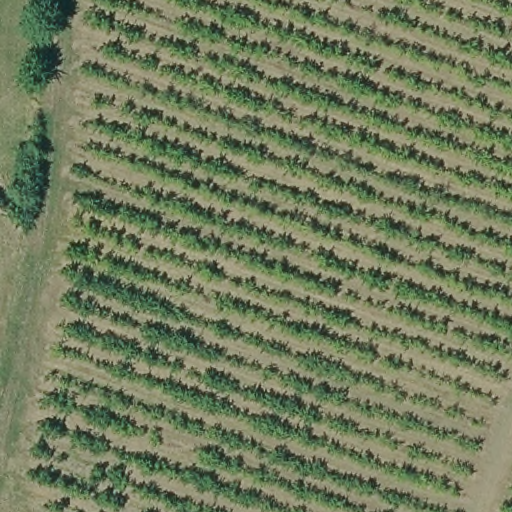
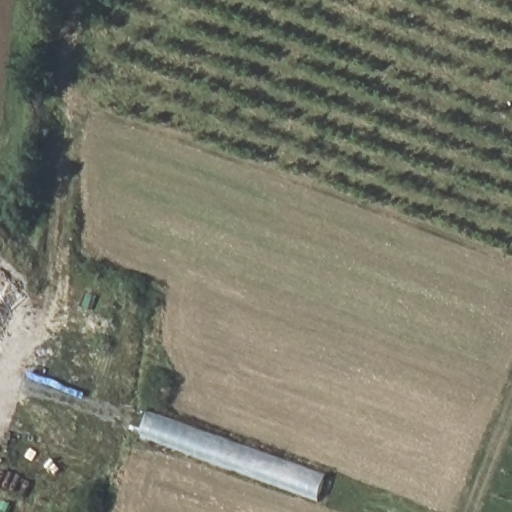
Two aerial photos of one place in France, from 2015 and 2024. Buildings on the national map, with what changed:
new [(324,473),(315,502),(136,438),(146,411),(324,473)]

